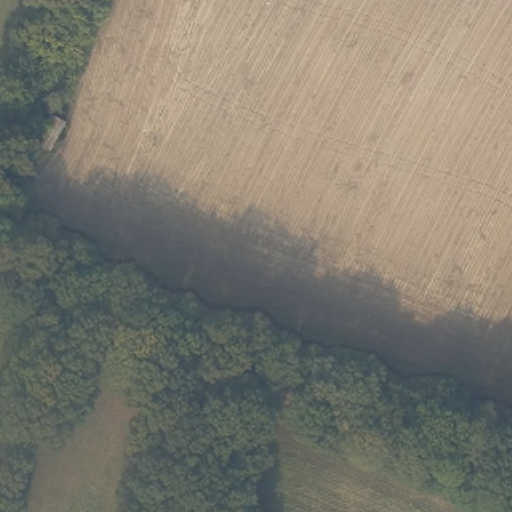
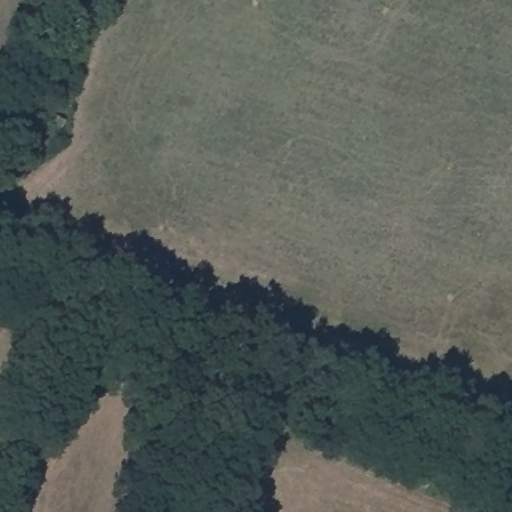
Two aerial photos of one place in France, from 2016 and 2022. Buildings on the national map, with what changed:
unchanged [(36,143),(47,114),(65,121),(54,150),(36,143)]

